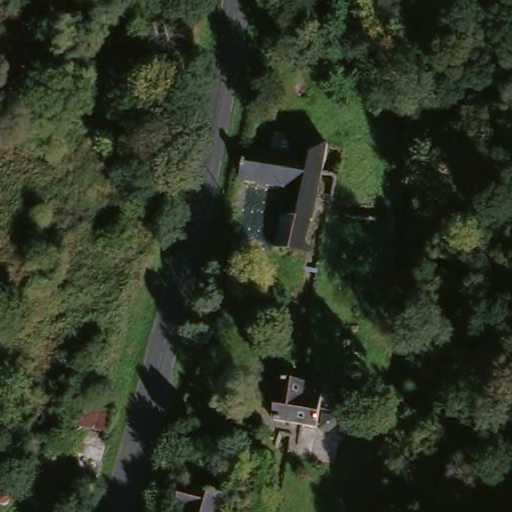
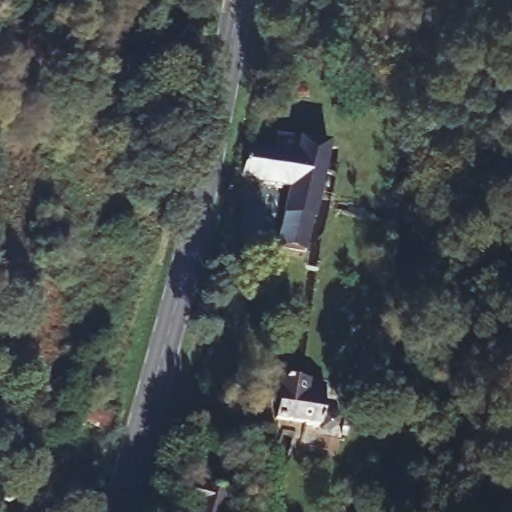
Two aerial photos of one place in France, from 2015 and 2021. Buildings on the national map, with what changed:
unchanged [(299,282),(267,276),(288,188),(295,157),(273,152),(278,132),(329,143),(299,282)]
unchanged [(273,152),(295,157),(288,188),(237,176),(243,146),(273,152)]
unchanged [(328,426),(295,418),(284,416),(277,412),(286,374),(294,375),(304,378),(325,383),(322,400),(334,403),(329,426),(328,426)]
unchanged [(84,425),(78,424),(83,406),(119,416),(123,417),(102,489),(90,486),(69,481),(84,425)]
unchanged [(182,512),(189,486),(232,500),(228,512),(182,512)]

